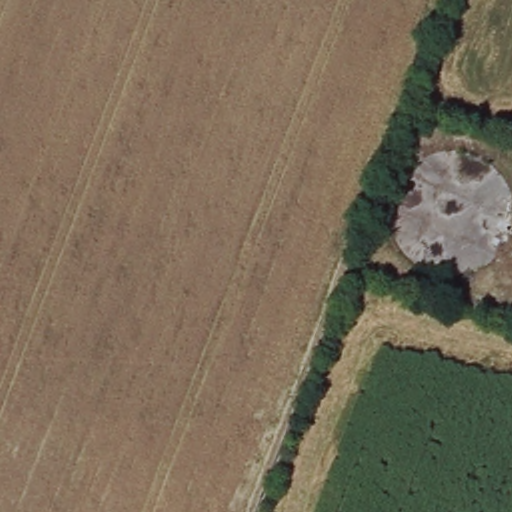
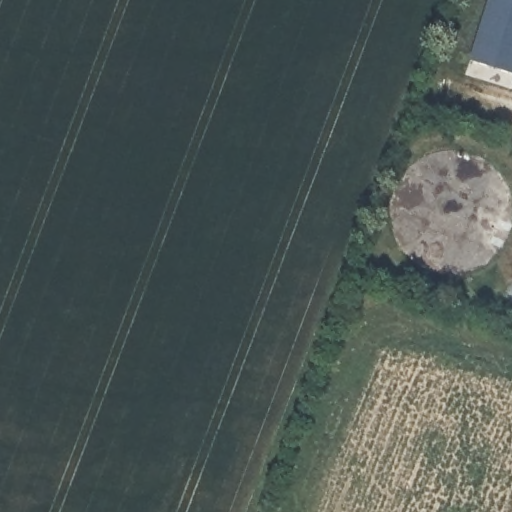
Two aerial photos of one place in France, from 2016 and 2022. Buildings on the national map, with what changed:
new [(487,0),(512,0),(512,71),(468,59),(487,0)]

